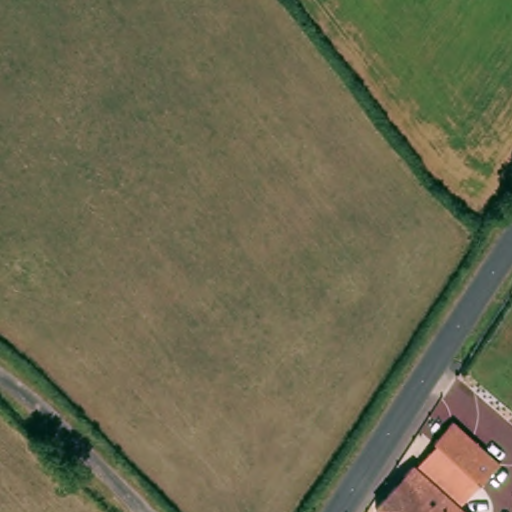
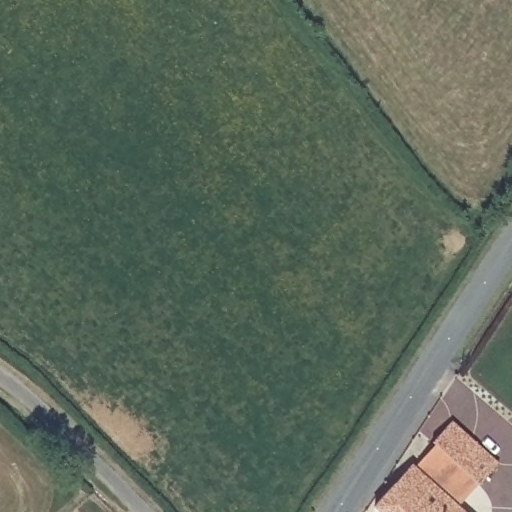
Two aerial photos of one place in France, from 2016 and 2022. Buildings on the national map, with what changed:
unchanged [(420,467),(440,444),(438,442),(456,422),(501,462),(483,482),(480,481),(460,503),(470,512),(387,512),(378,504),(417,465),(420,467)]

